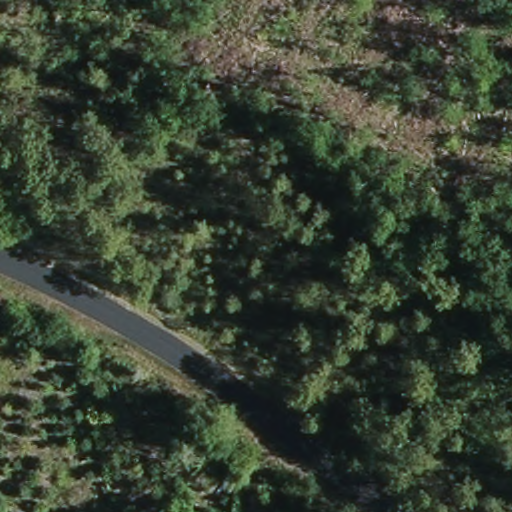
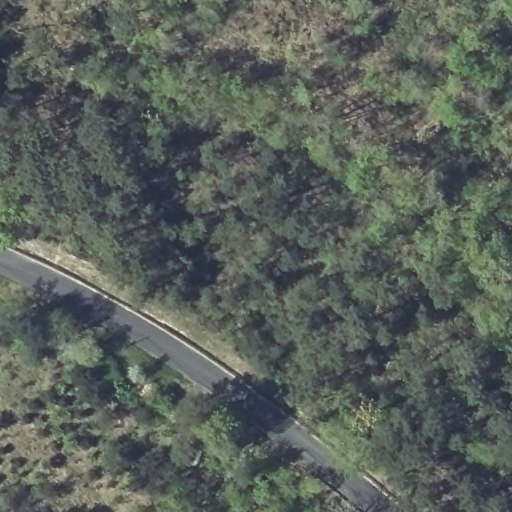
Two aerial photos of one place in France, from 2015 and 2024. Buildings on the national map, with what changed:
[]

